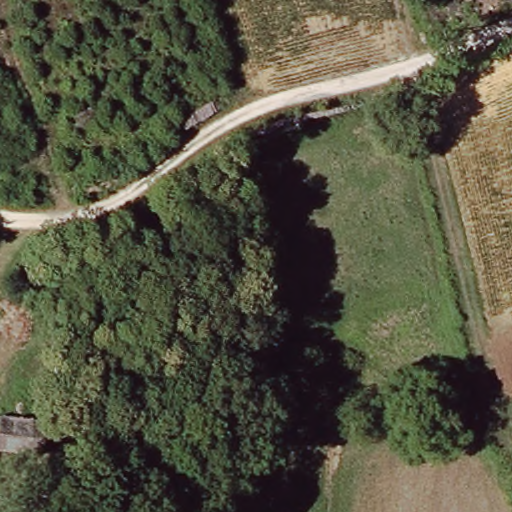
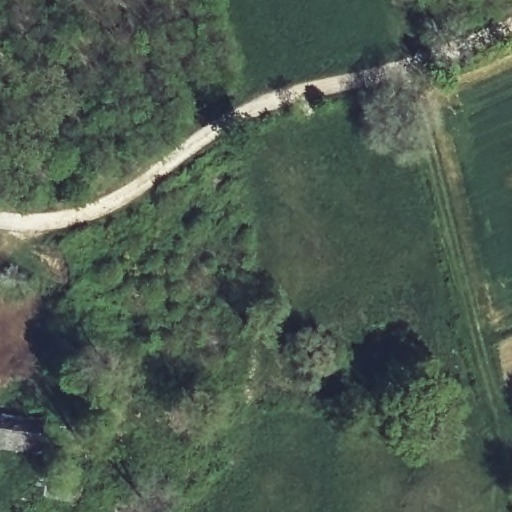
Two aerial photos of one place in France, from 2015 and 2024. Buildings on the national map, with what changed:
unchanged [(46,424),(43,454),(0,449),(0,422),(1,415),(20,418),(21,407),(47,409),(46,424)]

